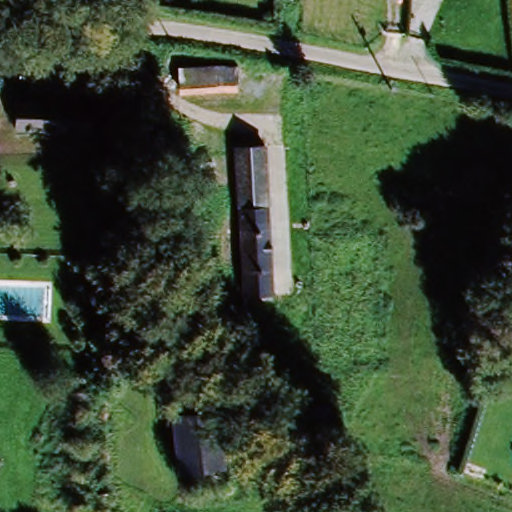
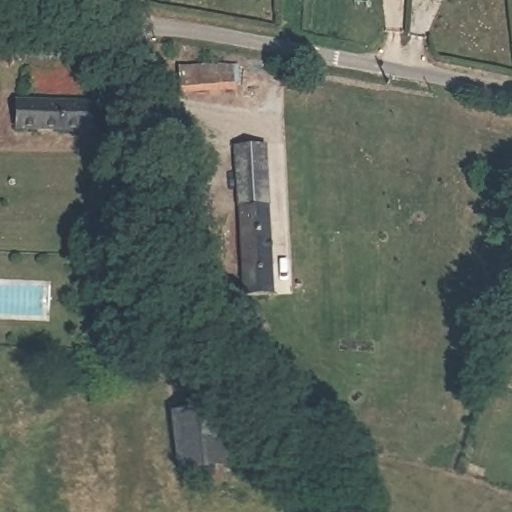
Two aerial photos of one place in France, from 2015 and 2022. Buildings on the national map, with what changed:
unchanged [(14,42),(87,42),(111,66),(45,64),(14,64),(14,42)]
unchanged [(195,62),(235,72),(231,88),(192,80),(195,62)]
unchanged [(22,132),(20,125),(6,122),(10,99),(105,107),(102,140),(22,132)]
unchanged [(237,297),(236,151),(267,151),(268,297),(237,297)]
unchanged [(178,478),(177,401),(217,400),(218,477),(178,478)]

